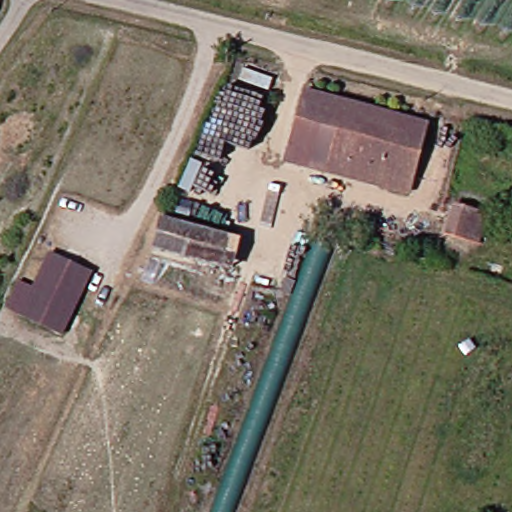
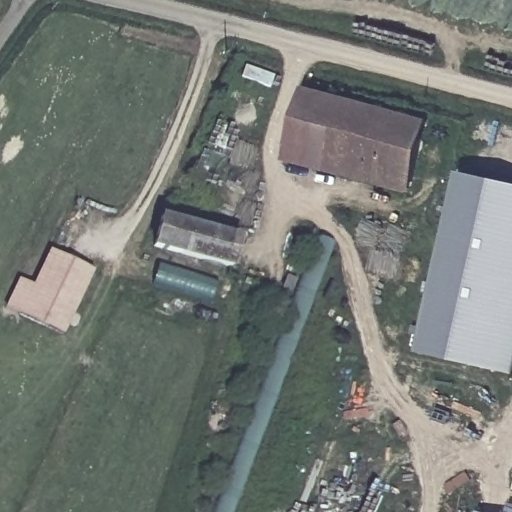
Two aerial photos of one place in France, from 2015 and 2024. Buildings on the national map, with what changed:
unchanged [(267,94),(251,147),(239,144),(237,156),(196,145),(200,127),(210,129),(224,84),(267,94)]
unchanged [(303,88),(398,115),(383,172),(286,145),(303,88)]
unchanged [(281,160),(286,145),(383,172),(398,115),(419,120),(399,192),(378,186),(281,160)]
new [(512,184),(512,374),(420,352),(461,172),(512,184)]
demolished [(473,204),(466,231),(446,226),(453,198),(473,204)]
unchanged [(224,270),(168,255),(141,247),(149,219),(176,226),(234,240),(224,270)]
unchanged [(205,512),(313,238),(331,244),(228,512),(205,512)]
unchanged [(93,265),(62,330),(6,303),(18,274),(33,281),(50,244),(93,265)]
new [(481,512),(479,512),(479,511),(481,512)]

